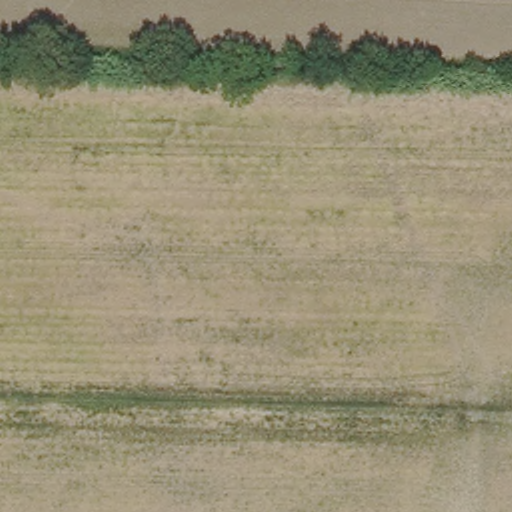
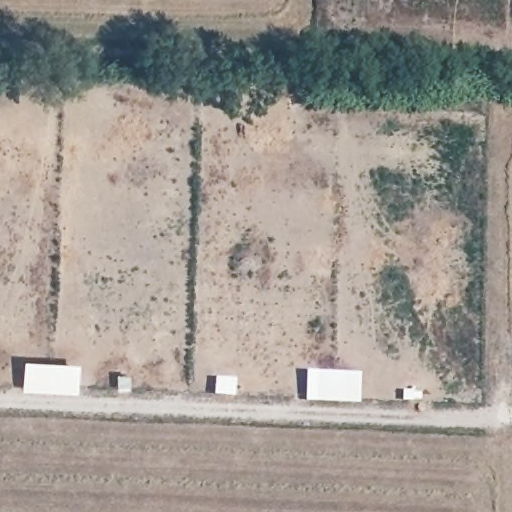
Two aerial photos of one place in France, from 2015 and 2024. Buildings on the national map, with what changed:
new [(80,363),(78,395),(21,391),(23,361),(80,363)]
new [(365,376),(364,408),(310,405),(311,375),(365,376)]

